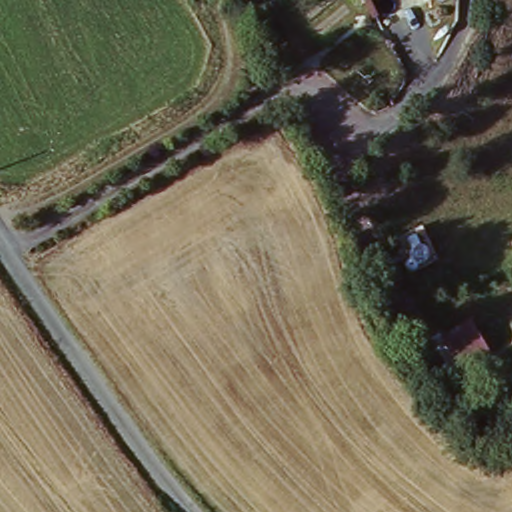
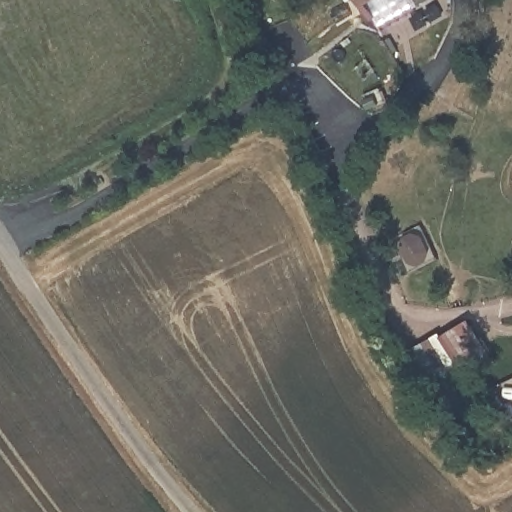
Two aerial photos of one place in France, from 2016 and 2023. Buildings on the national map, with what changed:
unchanged [(358,0),(364,0),(359,2),(358,0)]

